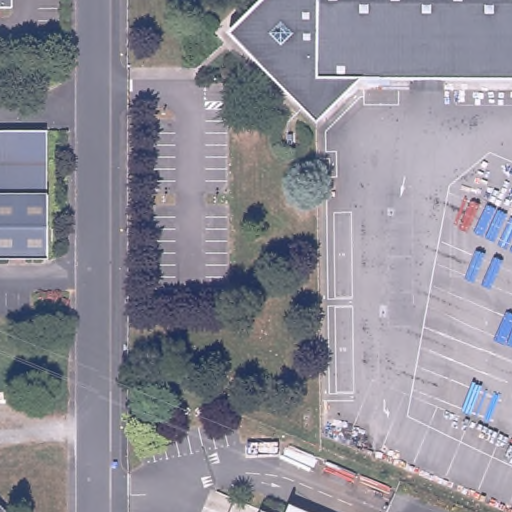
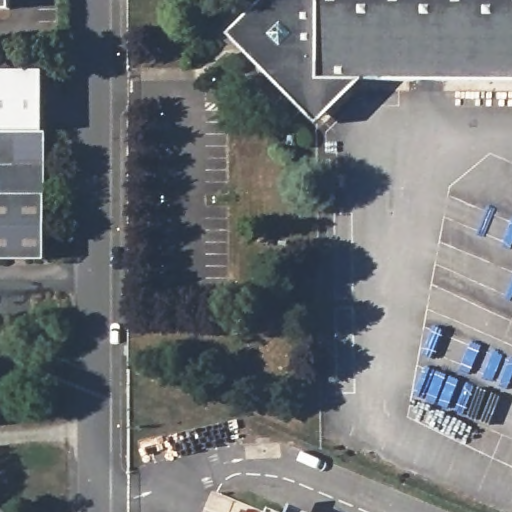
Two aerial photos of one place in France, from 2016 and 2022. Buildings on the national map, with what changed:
unchanged [(11,12),(0,12),(0,0),(11,0),(11,12)]
unchanged [(278,0),(512,0),(512,86),(353,84),(318,117),(241,37),(278,0)]
new [(44,135),(0,135),(0,70),(43,70),(44,135)]
unchanged [(46,195),(0,195),(0,135),(46,135),(46,195)]
unchanged [(46,260),(0,260),(0,195),(46,195),(46,260)]
unchanged [(301,512),(287,512),(290,507),(301,512)]
unchanged [(262,512),(259,512),(260,511),(262,512)]

